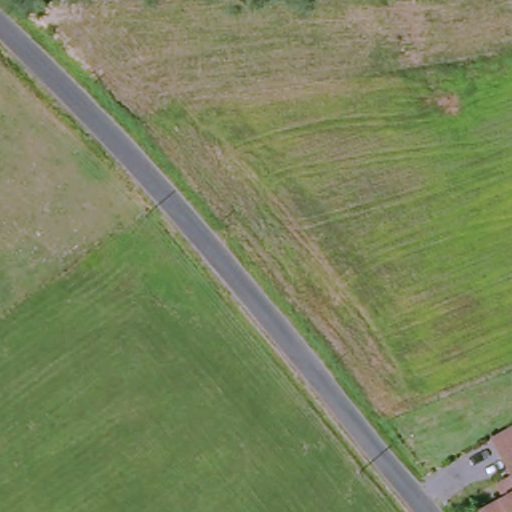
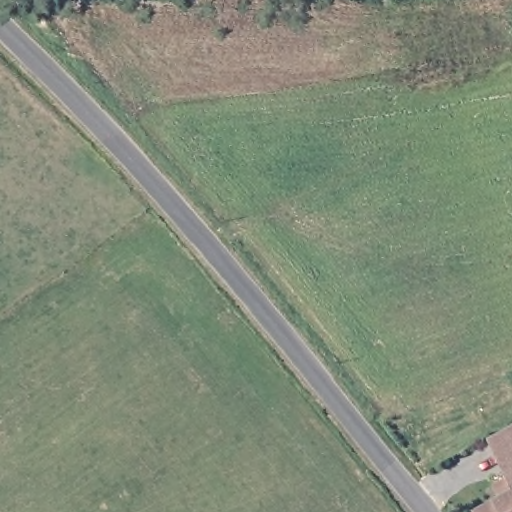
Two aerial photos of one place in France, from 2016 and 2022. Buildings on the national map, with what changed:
unchanged [(480,506),(503,493),(496,482),(512,473),(490,436),(512,423),(512,512),(483,512),(480,506)]

